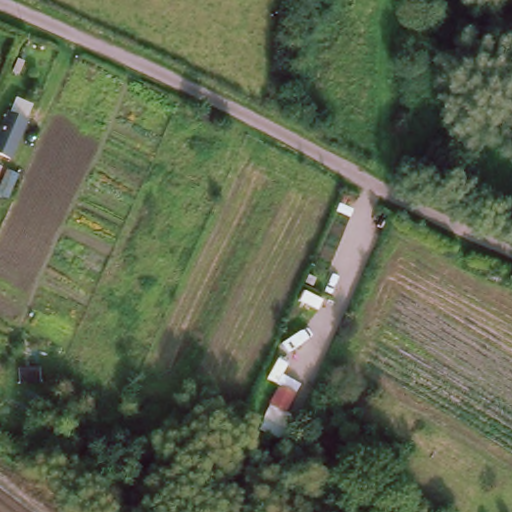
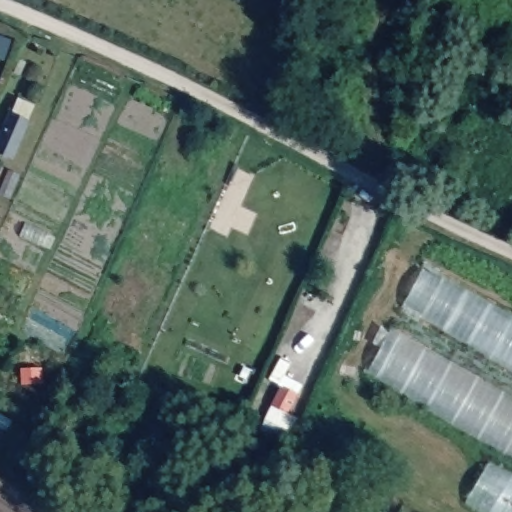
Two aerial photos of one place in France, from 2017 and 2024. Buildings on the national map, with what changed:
unchanged [(0,151),(0,138),(10,109),(26,115),(12,155),(0,151)]
new [(424,264),(512,316),(512,373),(400,308),(424,264)]
new [(512,457),(365,374),(392,327),(512,397),(512,457)]
new [(280,386),(269,380),(278,362),(290,369),(286,377),(302,386),(287,414),(295,418),(282,441),(262,431),(270,405),(280,386)]

